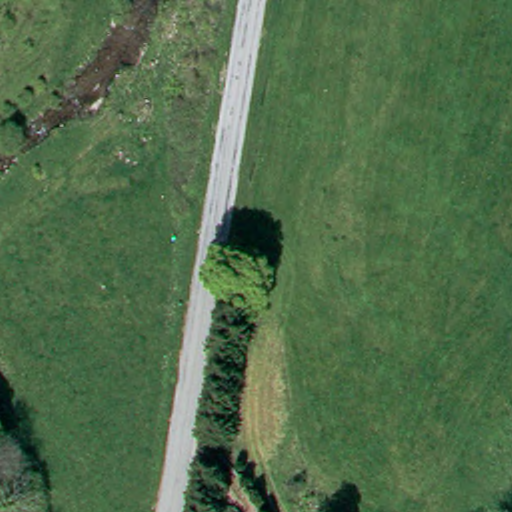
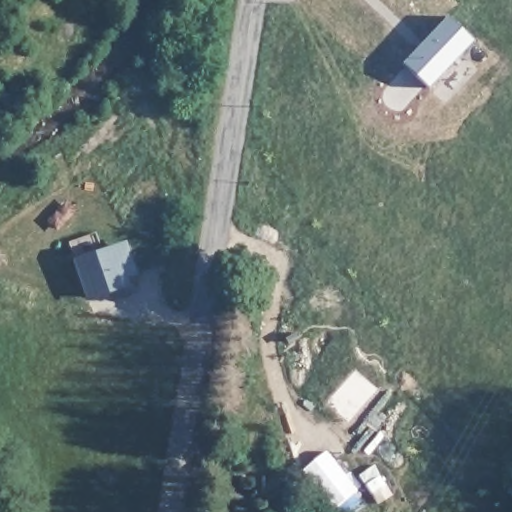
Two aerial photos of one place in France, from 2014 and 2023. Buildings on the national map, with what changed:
new [(445,17),(471,42),(427,89),(400,64),(445,17)]
new [(127,247),(136,274),(126,278),(130,285),(91,299),(79,264),(127,247)]

